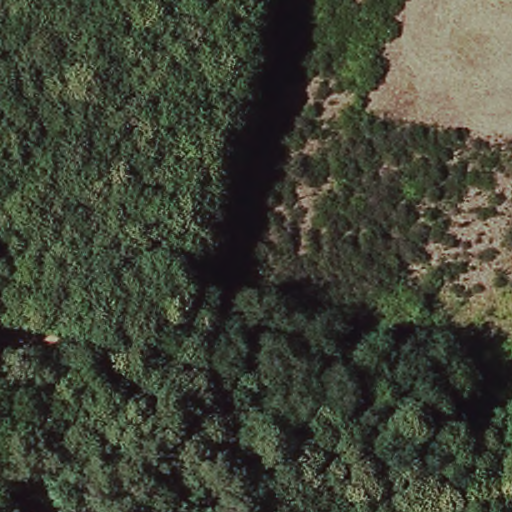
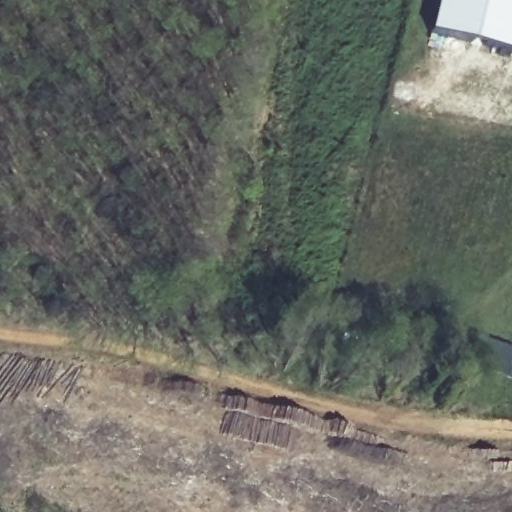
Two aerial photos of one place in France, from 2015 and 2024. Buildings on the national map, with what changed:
new [(436,0),(512,0),(512,48),(511,52),(428,32),(436,0)]

